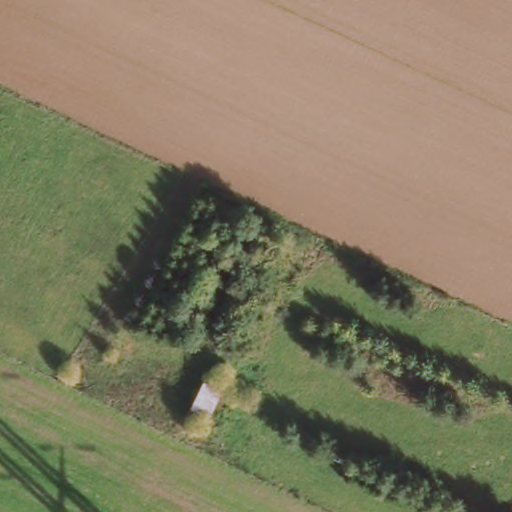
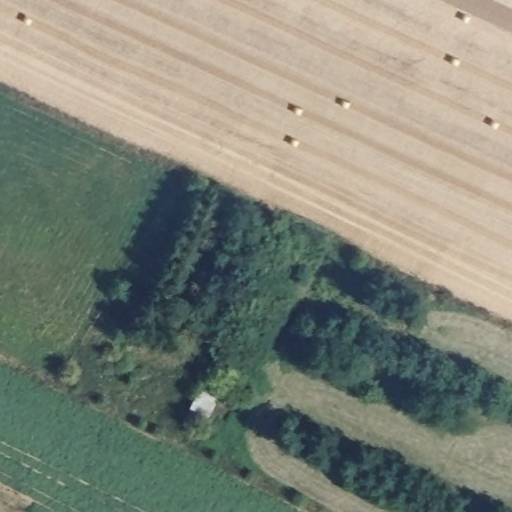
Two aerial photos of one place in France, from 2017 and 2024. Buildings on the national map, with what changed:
unchanged [(224,389),(204,427),(185,414),(204,379),(224,389)]

